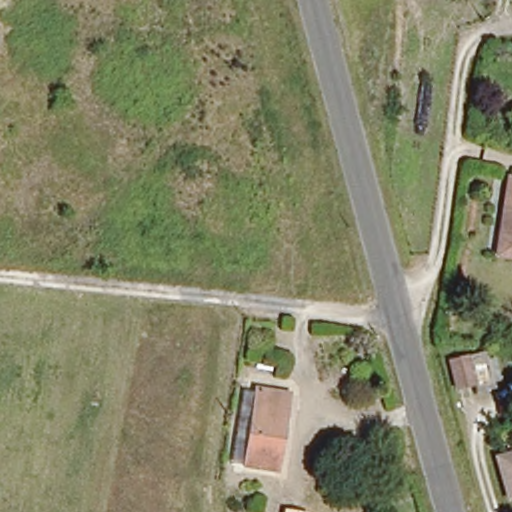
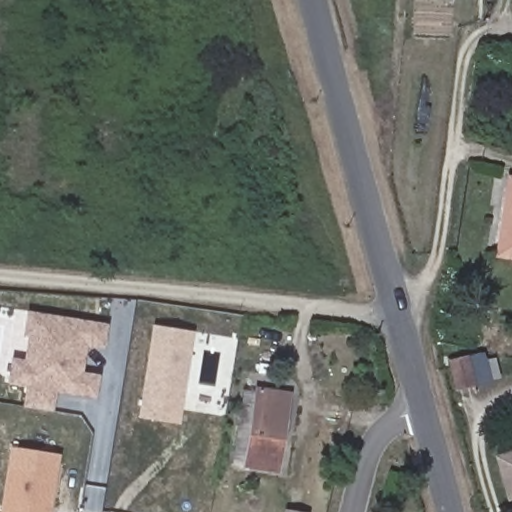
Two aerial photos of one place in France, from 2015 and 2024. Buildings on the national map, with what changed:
unchanged [(510,179),(512,179),(512,258),(497,255),(510,179)]
new [(106,324),(103,344),(86,342),(81,373),(98,376),(95,396),(55,389),(51,411),(24,407),(27,386),(9,383),(12,359),(24,362),(29,334),(24,334),(27,312),(106,324)]
new [(193,332),(178,424),(139,419),(152,325),(193,332)]
unchanged [(472,384),(456,389),(449,361),(464,357),(472,384)]
unchanged [(289,393),(273,472),(239,466),(254,386),(289,393)]
new [(59,455),(50,512),(2,512),(12,448),(59,455)]
unchanged [(500,475),(495,457),(503,455),(512,453),(512,496),(506,498),(500,475)]
unchanged [(299,512),(287,512),(288,509),(299,512)]

